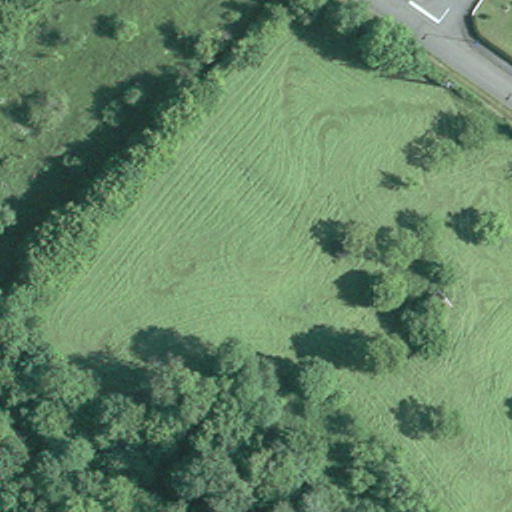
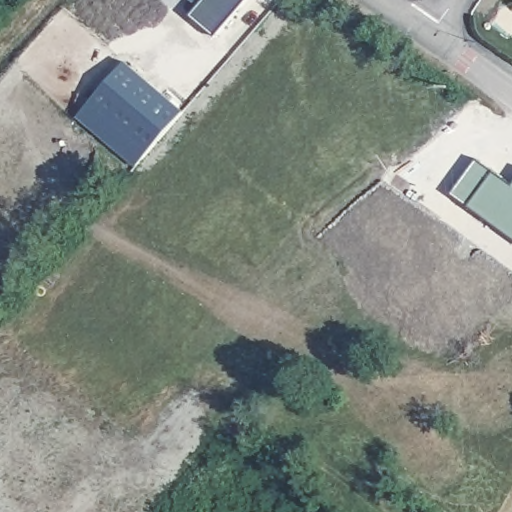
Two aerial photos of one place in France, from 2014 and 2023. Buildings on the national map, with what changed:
new [(191,15),(201,6),(193,0),(248,0),(216,36),(191,15)]
new [(127,60),(185,110),(135,167),(78,117),(127,60)]
new [(511,185),(512,184),(512,241),(449,194),(476,160),(511,185)]
unchanged [(426,305),(438,294),(448,305),(435,316),(426,305)]

